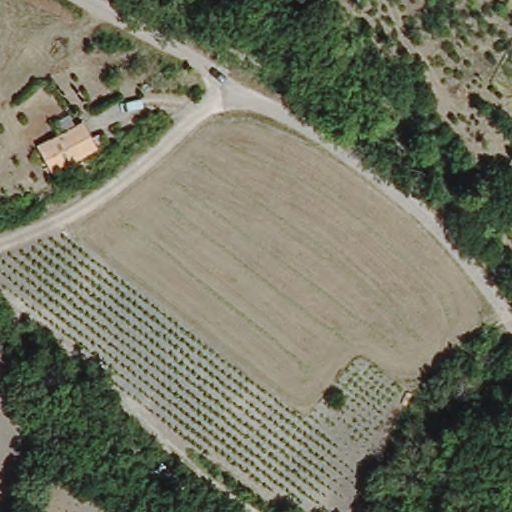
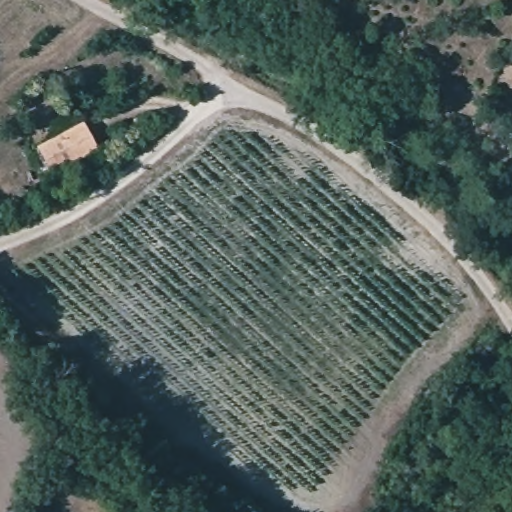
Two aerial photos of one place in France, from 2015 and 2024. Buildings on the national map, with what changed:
unchanged [(98,151),(50,173),(37,150),(84,126),(98,151)]

